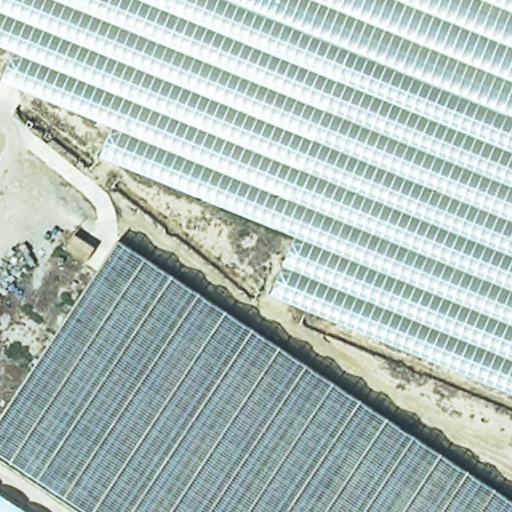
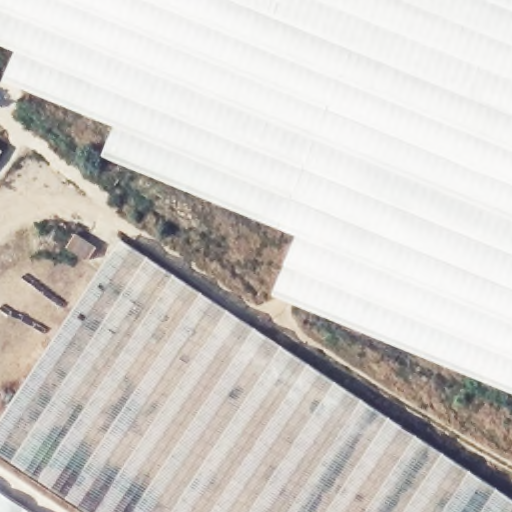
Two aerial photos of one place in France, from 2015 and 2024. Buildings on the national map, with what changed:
unchanged [(269,302),(293,239),(98,164),(110,130),(1,91),(12,57),(0,52),(0,0),(512,0),(512,400),(269,302)]
unchanged [(0,419),(120,237),(512,497),(512,512),(85,512),(0,456),(0,419)]
unchanged [(0,512),(0,491),(32,512),(0,512)]

